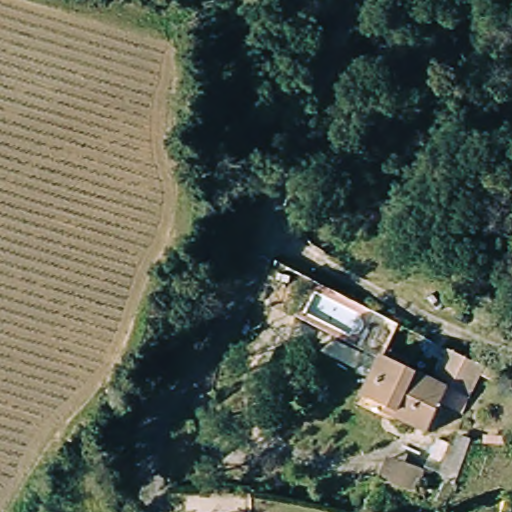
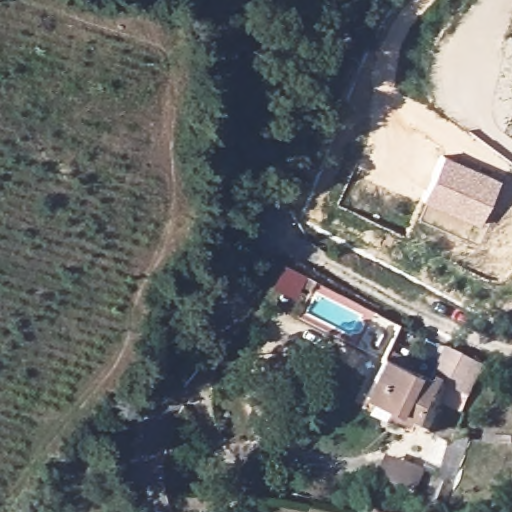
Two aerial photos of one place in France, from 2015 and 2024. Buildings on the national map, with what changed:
new [(500,181),(481,223),(423,197),(442,155),(500,181)]
unchanged [(410,407),(426,372),(440,378),(454,348),(489,366),(475,393),(452,383),(435,418),(410,407)]
unchanged [(360,405),(374,375),(384,353),(426,372),(410,407),(435,418),(429,431),(395,415),(393,420),(360,405)]
unchanged [(452,446),(469,453),(452,487),(437,481),(452,446)]
unchanged [(393,457),(425,472),(415,492),(383,477),(393,457)]

